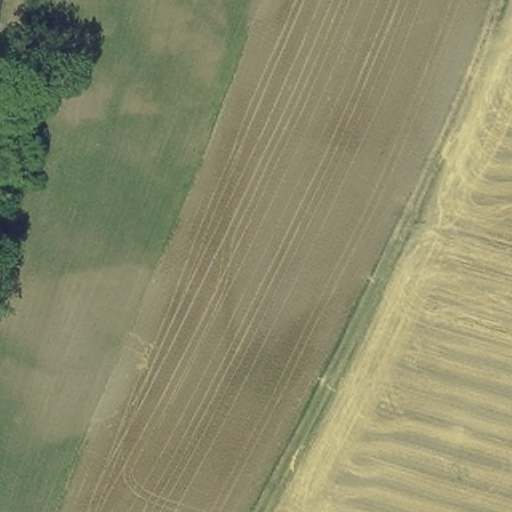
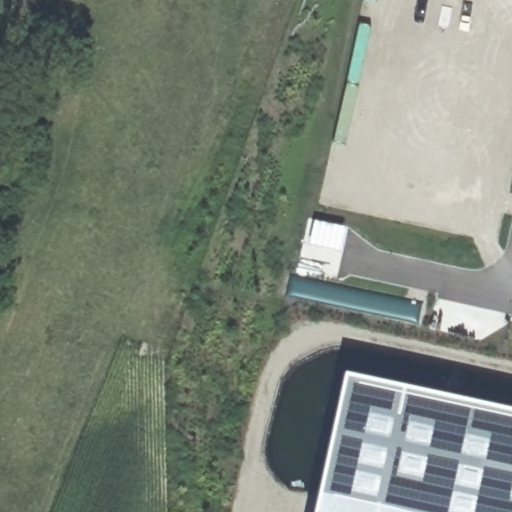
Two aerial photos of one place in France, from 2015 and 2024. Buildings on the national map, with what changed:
new [(316,222),(346,228),(340,253),(310,246),(316,222)]
new [(512,414),(512,512),(317,512),(347,378),(512,414)]

